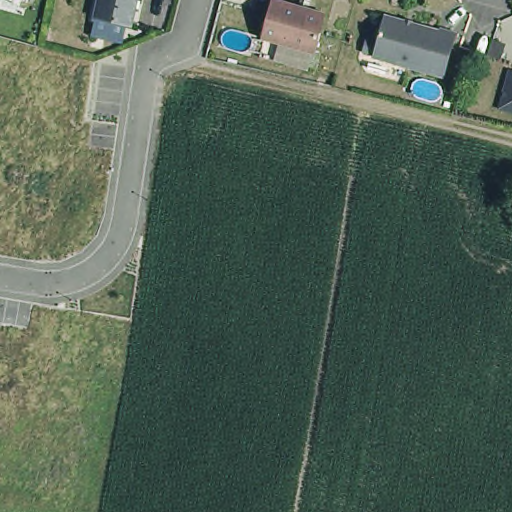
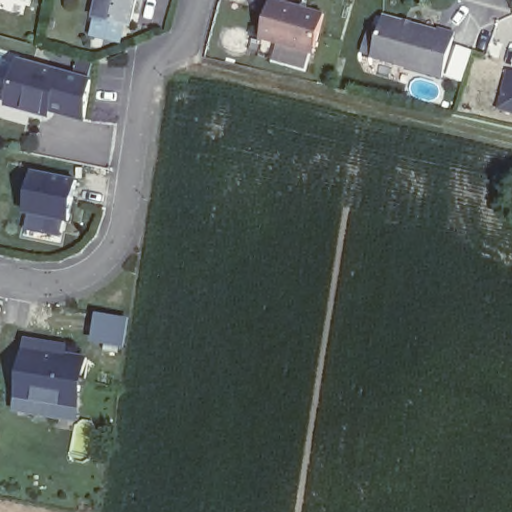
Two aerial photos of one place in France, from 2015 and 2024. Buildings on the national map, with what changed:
unchanged [(94,27),(99,7),(101,0),(140,0),(135,21),(131,36),(130,40),(93,31),(94,27)]
unchanged [(292,0),(329,10),(317,50),(265,35),(275,0),(292,0)]
unchanged [(444,25),(445,22),(460,26),(447,71),(377,51),(389,10),(444,25)]
new [(84,122),(51,113),(49,119),(7,107),(20,59),(92,77),(84,122)]
unchanged [(507,75),(512,76),(512,98),(501,95),(507,75)]
new [(24,214),(32,171),(78,180),(70,222),(24,214)]
new [(130,317),(125,350),(92,345),(97,312),(130,317)]
new [(12,412),(25,338),(69,343),(67,354),(89,357),(78,422),(12,412)]

